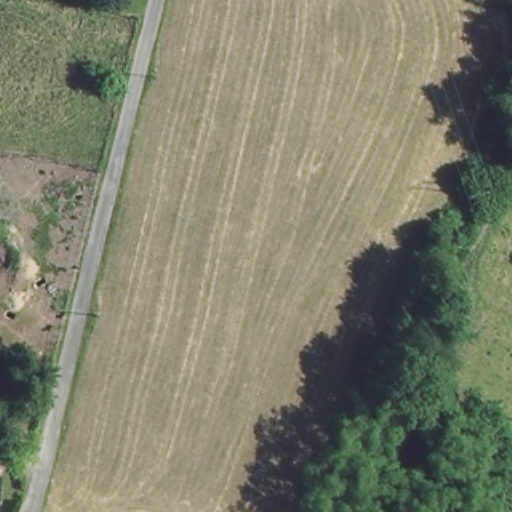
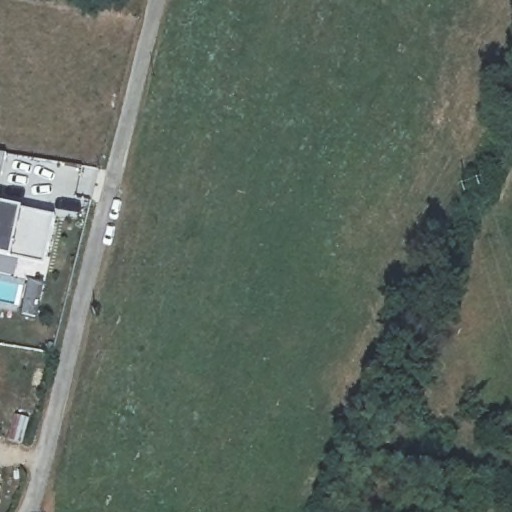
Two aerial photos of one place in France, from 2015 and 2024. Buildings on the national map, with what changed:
new [(6,155),(0,182),(0,154),(6,155)]
new [(43,263),(12,256),(0,253),(0,206),(22,210),(55,217),(43,263)]

